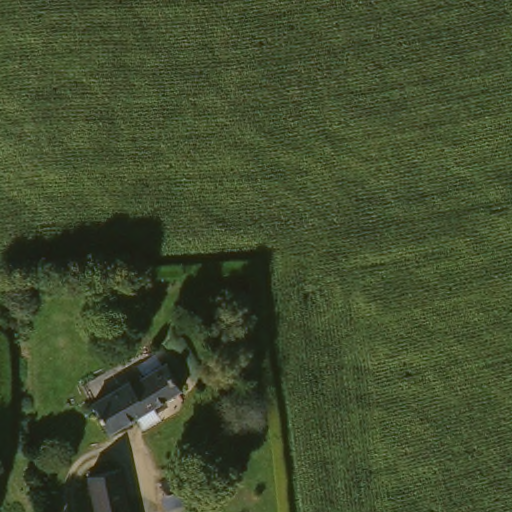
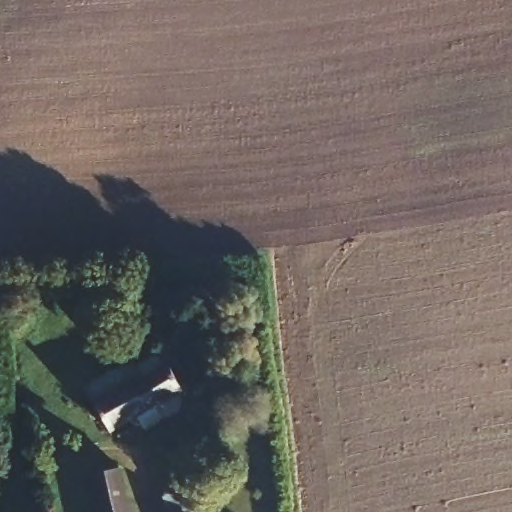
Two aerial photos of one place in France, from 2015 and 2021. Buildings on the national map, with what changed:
unchanged [(133,372),(142,386),(176,365),(188,383),(117,427),(99,400),(98,397),(133,372)]
unchanged [(182,466),(186,483),(173,485),(168,470),(182,466)]
unchanged [(118,467),(128,512),(99,512),(90,473),(118,467)]

